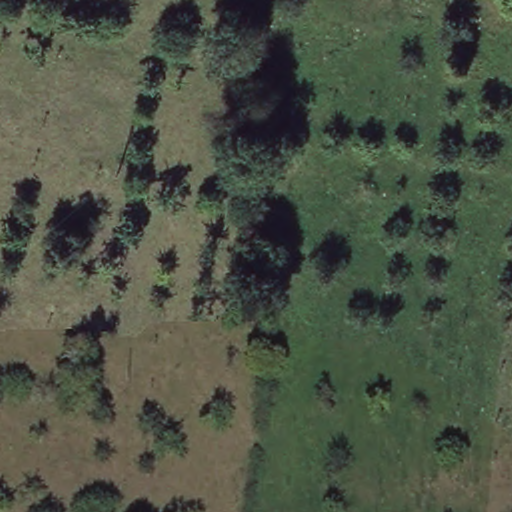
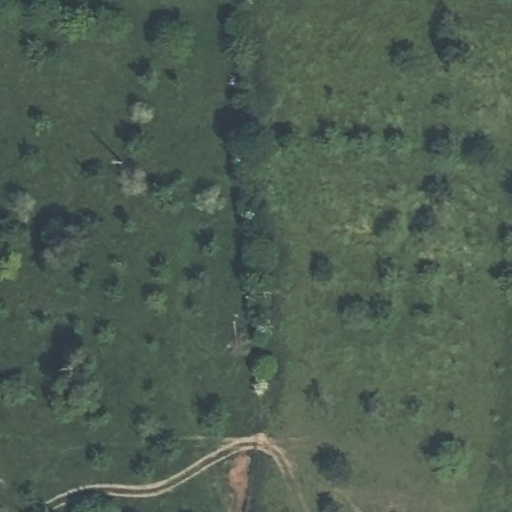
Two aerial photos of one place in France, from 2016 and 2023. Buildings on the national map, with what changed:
[]

